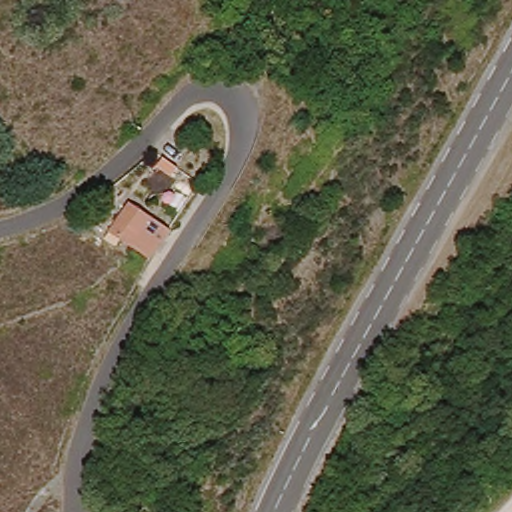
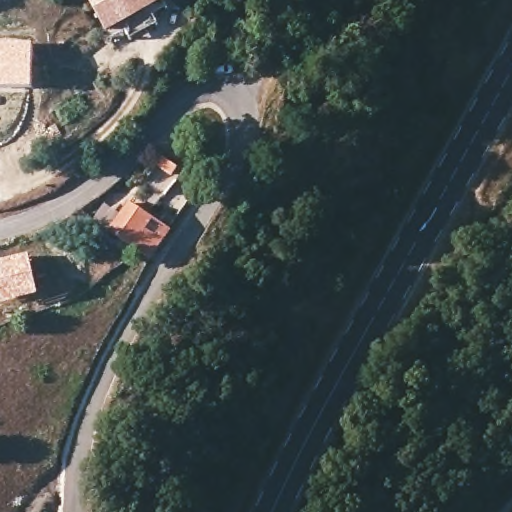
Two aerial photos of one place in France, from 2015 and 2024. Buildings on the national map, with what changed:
new [(149,12),(156,23),(137,34),(131,22),(107,34),(90,0),(164,0),(166,3),(149,12)]
unchanged [(221,42),(216,53),(201,45),(206,34),(221,42)]
new [(31,90),(0,89),(0,41),(32,42),(31,90)]
new [(175,167),(169,174),(155,164),(161,156),(175,167)]
unchanged [(115,236),(131,209),(169,234),(150,261),(115,236)]
new [(37,297),(1,306),(0,302),(0,260),(28,254),(37,297)]

